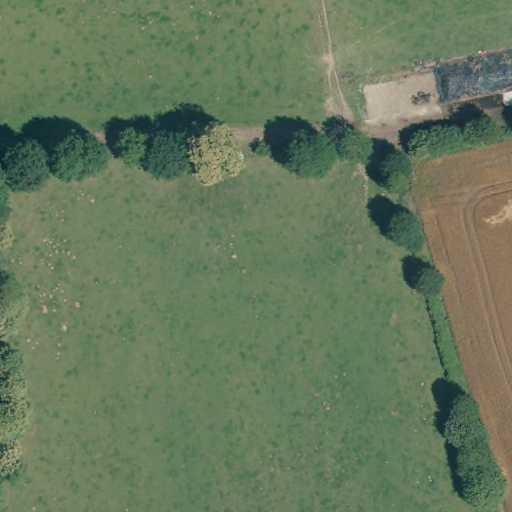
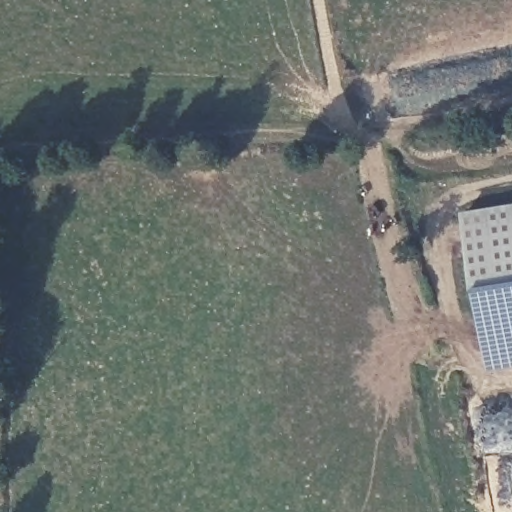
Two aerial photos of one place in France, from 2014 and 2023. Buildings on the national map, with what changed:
new [(460,214),(512,205),(512,370),(489,373),(460,214)]

